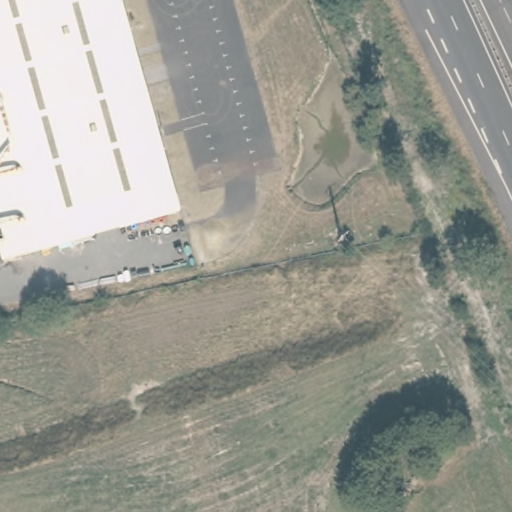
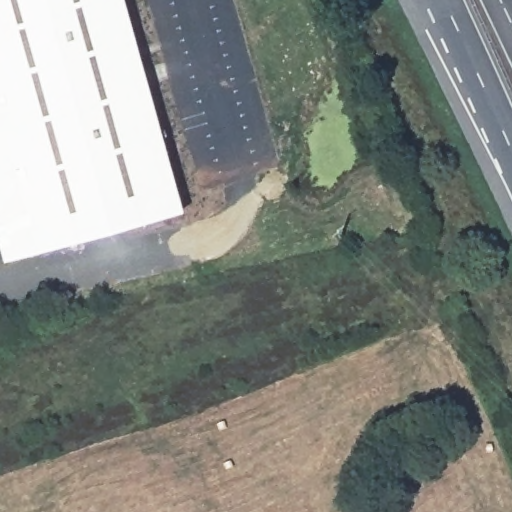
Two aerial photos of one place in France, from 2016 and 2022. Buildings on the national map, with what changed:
unchanged [(0,239),(0,0),(119,0),(182,207),(7,260),(0,239)]

